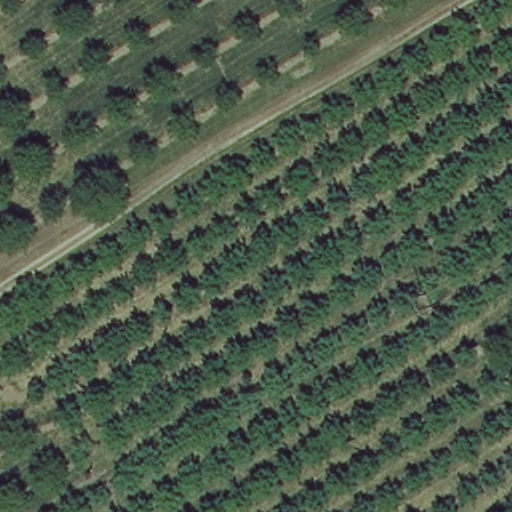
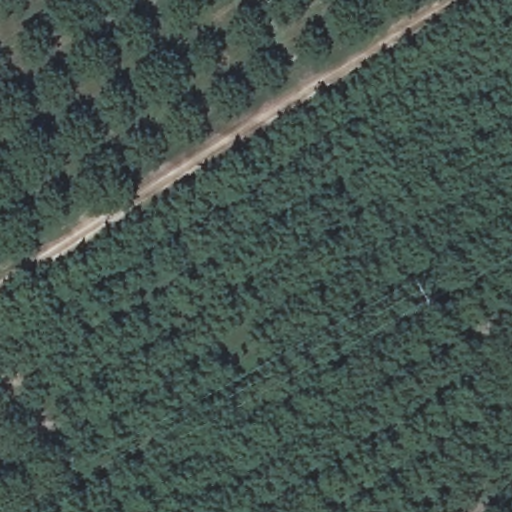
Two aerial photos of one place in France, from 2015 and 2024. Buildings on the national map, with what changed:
[]

